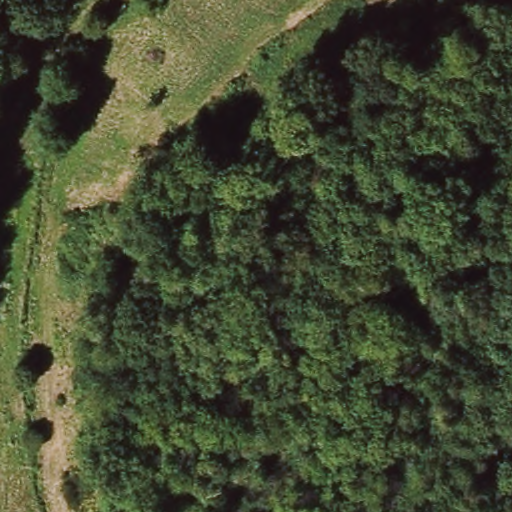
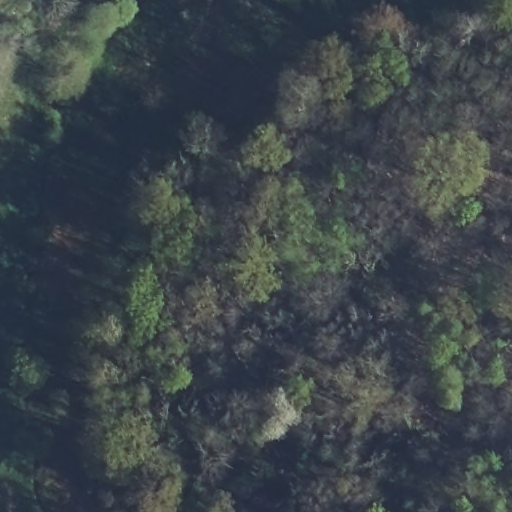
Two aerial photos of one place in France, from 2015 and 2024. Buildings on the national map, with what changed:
[]

